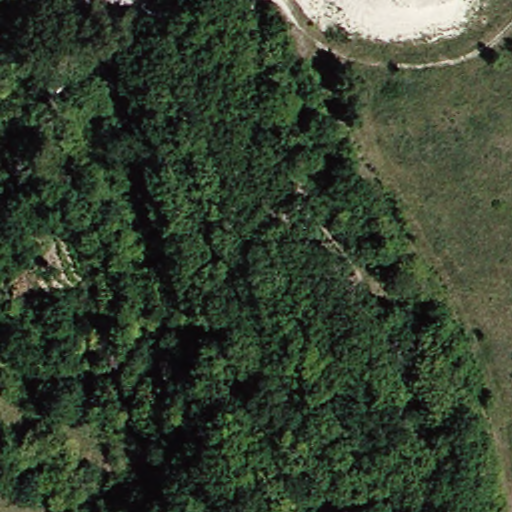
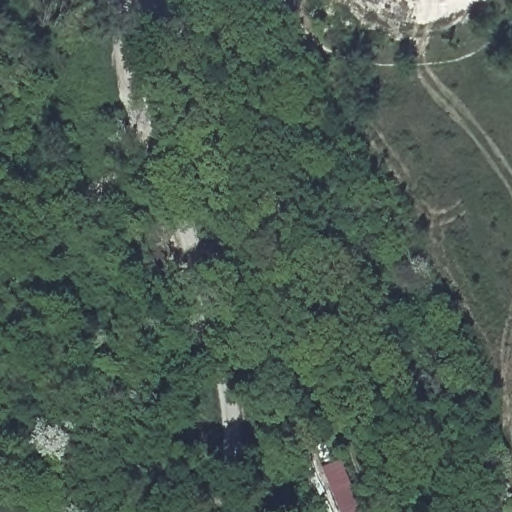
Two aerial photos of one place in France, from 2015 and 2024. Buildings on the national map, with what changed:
new [(343,461),(365,512),(340,512),(322,470),(343,461)]

